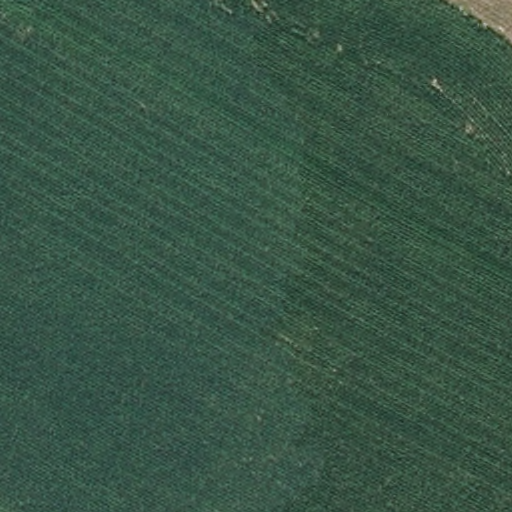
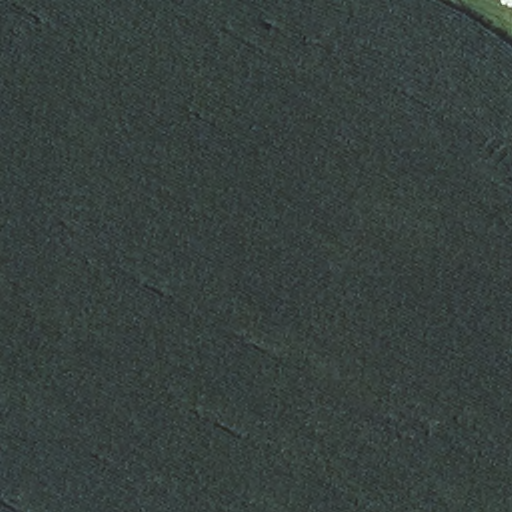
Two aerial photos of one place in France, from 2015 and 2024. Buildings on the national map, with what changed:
[]

